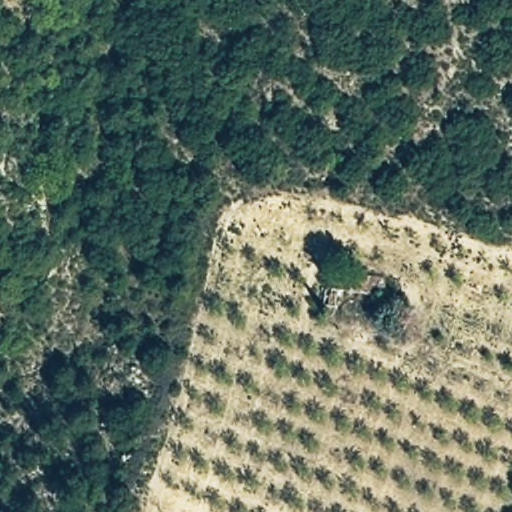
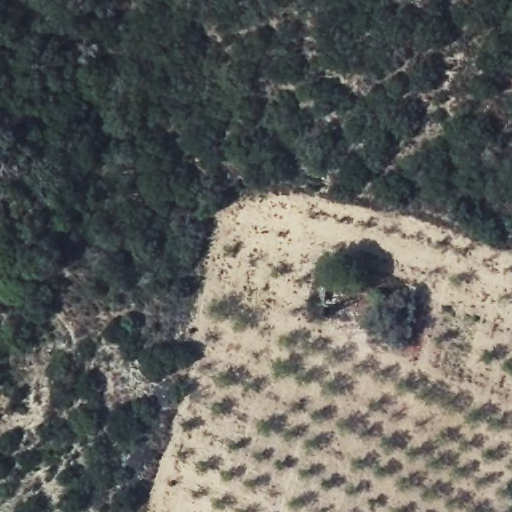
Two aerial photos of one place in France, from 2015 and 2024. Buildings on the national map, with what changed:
unchanged [(382,277),(381,296),(346,295),(347,277),(382,277)]

